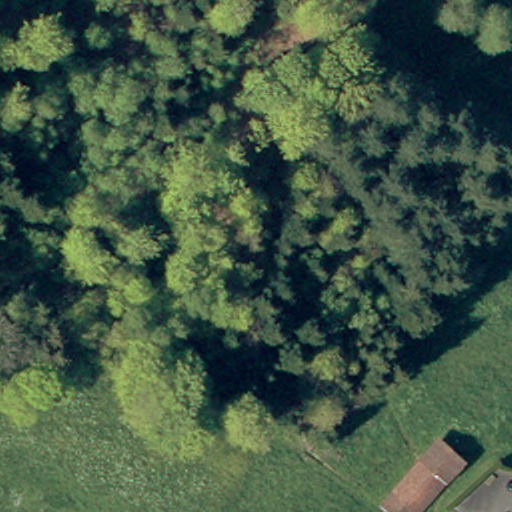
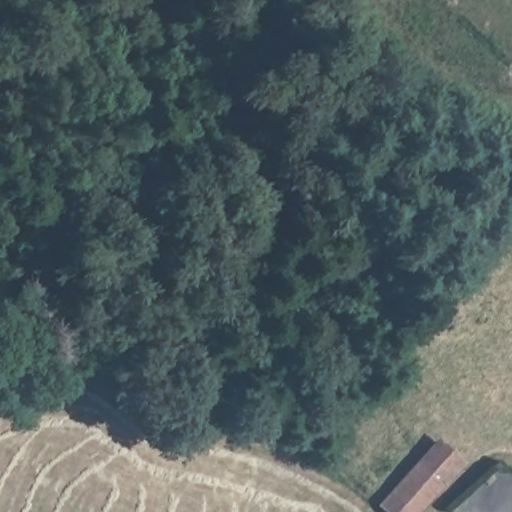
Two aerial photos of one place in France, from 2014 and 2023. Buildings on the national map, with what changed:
unchanged [(457,458),(413,512),(390,512),(379,503),(432,438),(457,458)]

